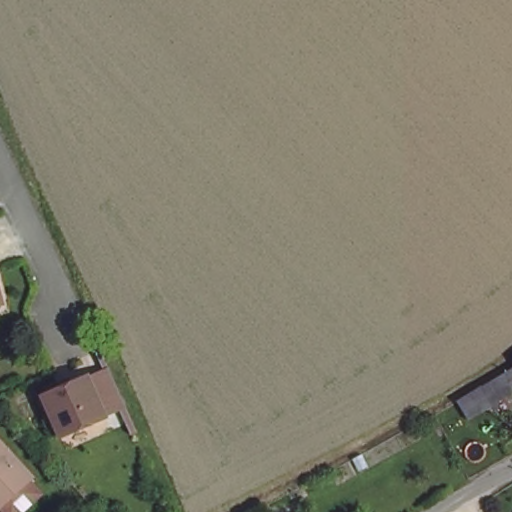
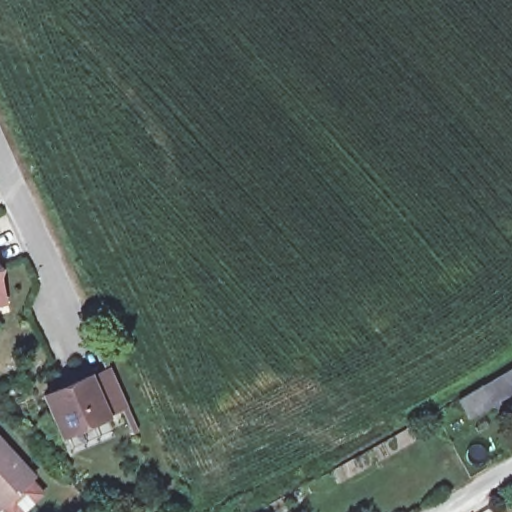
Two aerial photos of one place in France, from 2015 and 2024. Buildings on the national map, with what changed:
unchanged [(471,420),(459,397),(489,380),(512,368),(512,397),(502,403),(497,406),(471,420)]
unchanged [(104,417),(60,434),(42,394),(85,377),(104,417)]
unchanged [(0,498),(0,436),(32,469),(0,498)]

